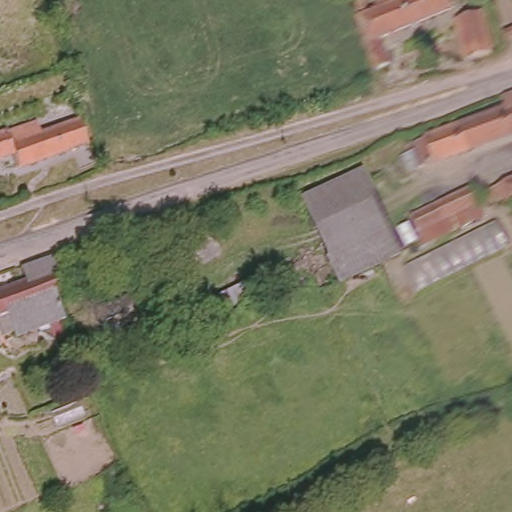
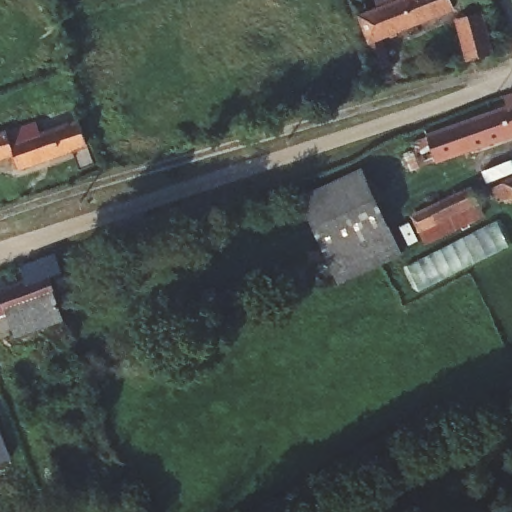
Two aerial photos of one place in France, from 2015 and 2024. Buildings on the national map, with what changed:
unchanged [(456,0),(461,11),(384,36),(395,65),(380,70),(358,16),(410,0),(456,0)]
unchanged [(465,21),(477,18),(490,59),(469,63),(458,24),(465,21)]
unchanged [(45,115),(82,103),(106,167),(80,175),(71,151),(19,168),(15,155),(0,160),(0,137),(46,119),(45,115)]
unchanged [(477,120),(475,113),(505,104),(507,111),(512,109),(512,137),(432,164),(409,172),(404,155),(415,151),(411,141),(424,136),(477,120)]
unchanged [(34,166),(36,174),(30,176),(28,169),(34,166)]
unchanged [(367,169),(399,259),(333,283),(300,193),(367,169)]
unchanged [(500,182),(512,177),(512,209),(505,193),(500,182)]
unchanged [(475,189),(485,202),(488,207),(440,237),(429,244),(417,225),(455,201),(475,189)]
unchanged [(510,248),(417,292),(404,266),(494,221),(510,248)]
unchanged [(69,251),(71,258),(73,264),(55,270),(50,257),(69,251)]
unchanged [(50,272),(59,292),(59,293),(65,315),(62,317),(69,333),(58,338),(52,321),(21,333),(17,323),(0,329),(0,290),(50,272)]
unchanged [(270,293),(217,317),(208,293),(260,275),(270,293)]
new [(10,459),(0,463),(0,434),(10,459)]

